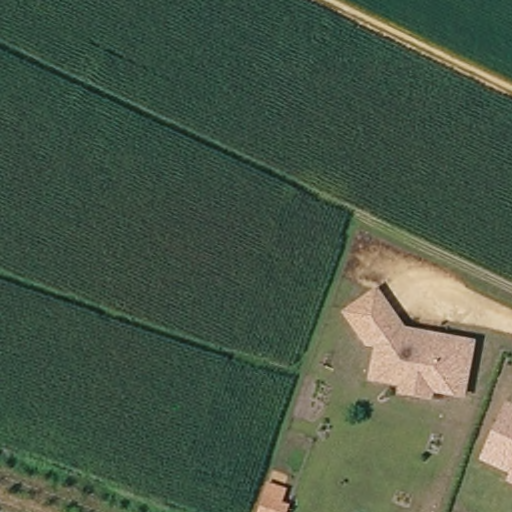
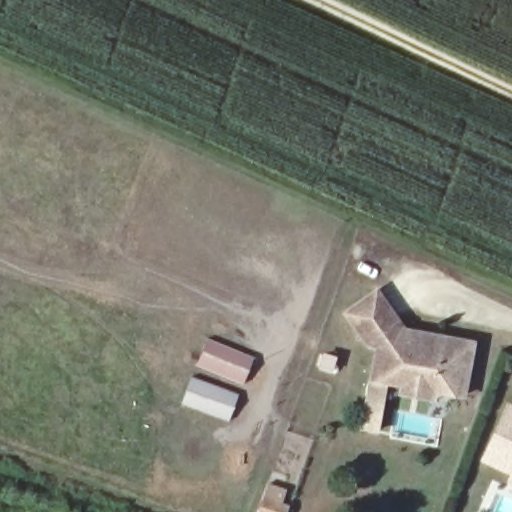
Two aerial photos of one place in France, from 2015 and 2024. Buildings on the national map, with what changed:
unchanged [(431,397),(402,392),(403,384),(385,380),(372,378),(379,344),(368,342),(351,318),(347,312),(355,307),(378,291),(402,325),(401,329),(418,332),(439,336),(474,343),(463,395),(441,391),(432,389),(431,397)]
new [(253,357),(242,383),(197,364),(207,338),(253,357)]
new [(238,394),(227,421),(182,403),(192,376),(238,394)]
unchanged [(512,408),(512,469),(488,458),(512,408)]
unchanged [(282,503),(290,505),(288,512),(257,512),(267,482),(287,488),(282,503)]

